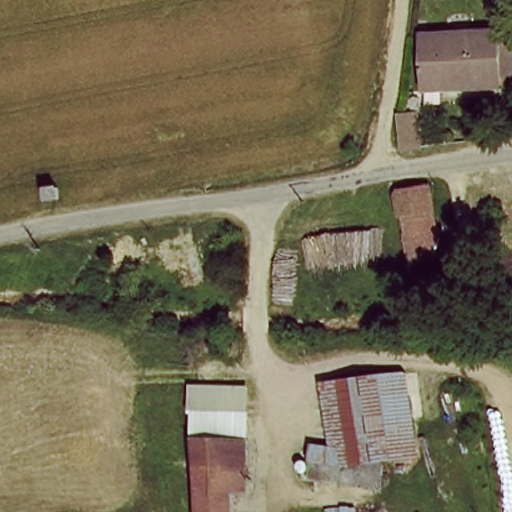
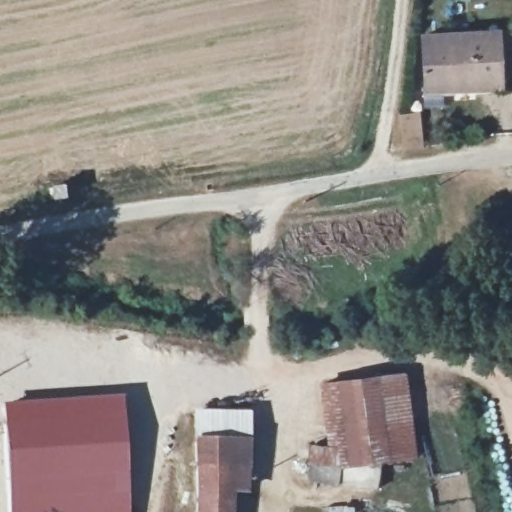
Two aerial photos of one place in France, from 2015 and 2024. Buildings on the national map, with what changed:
unchanged [(506,91),(430,100),(424,47),(501,38),(506,91)]
unchanged [(392,155),(395,137),(419,135),(422,151),(392,155)]
demolished [(440,225),(405,231),(401,205),(436,199),(440,225)]
unchanged [(382,456),(380,461),(339,455),(340,445),(331,445),(333,380),(380,380),(415,380),(414,457),(394,456),(382,456)]
unchanged [(249,389),(250,429),(198,429),(200,388),(249,389)]
new [(130,512),(7,512),(5,496),(0,418),(0,402),(122,394),(130,512)]
unchanged [(198,454),(198,429),(250,429),(250,454),(198,454)]
unchanged [(376,489),(304,479),(310,442),(331,445),(340,445),(339,455),(380,461),(376,489)]
unchanged [(233,509),(233,512),(198,512),(198,454),(250,454),(250,506),(233,509)]

